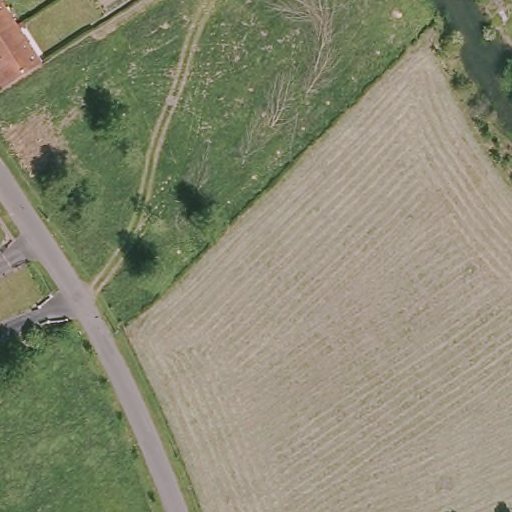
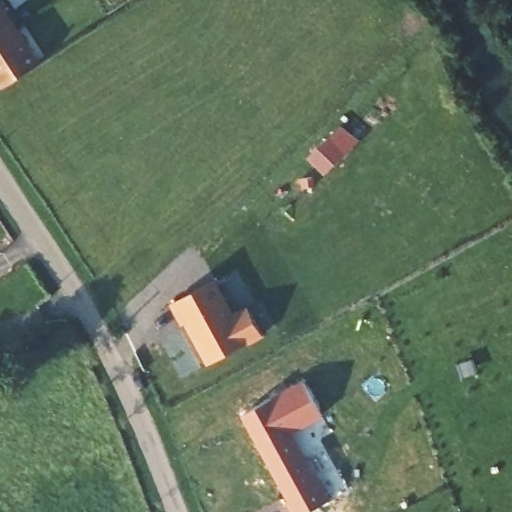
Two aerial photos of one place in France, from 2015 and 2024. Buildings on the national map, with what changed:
unchanged [(45,64),(8,94),(0,81),(0,0),(3,0),(45,64)]
new [(360,140),(325,175),(307,157),(341,126),(360,140)]
new [(170,304),(217,280),(235,313),(247,306),(263,337),(209,365),(185,324),(182,325),(170,304)]
new [(322,417),(295,435),(332,496),(305,512),(293,512),(242,415),(302,380),(322,417)]

